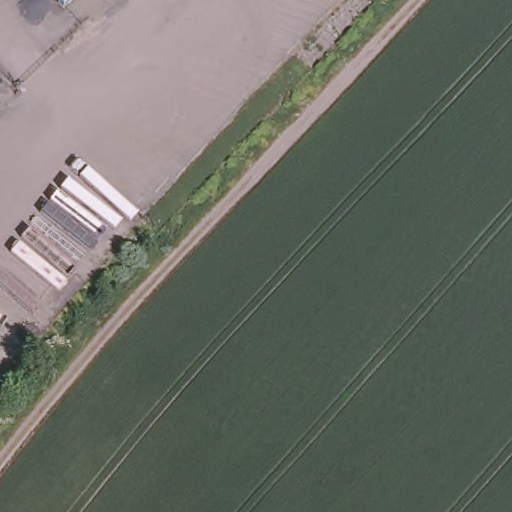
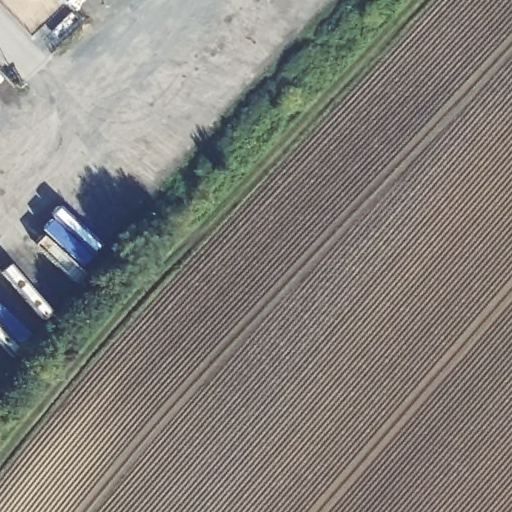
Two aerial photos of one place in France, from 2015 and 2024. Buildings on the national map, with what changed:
unchanged [(54,0),(71,0),(62,9),(54,0)]

